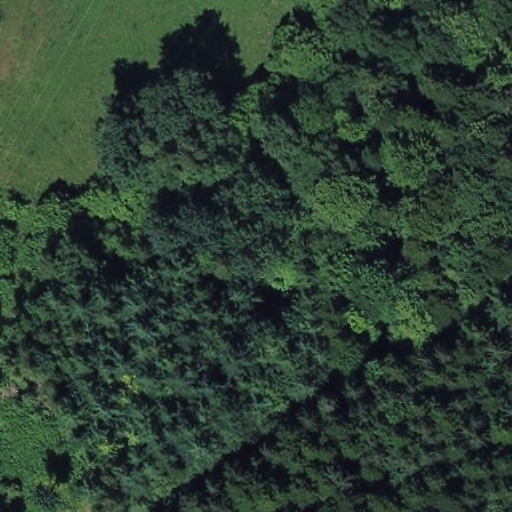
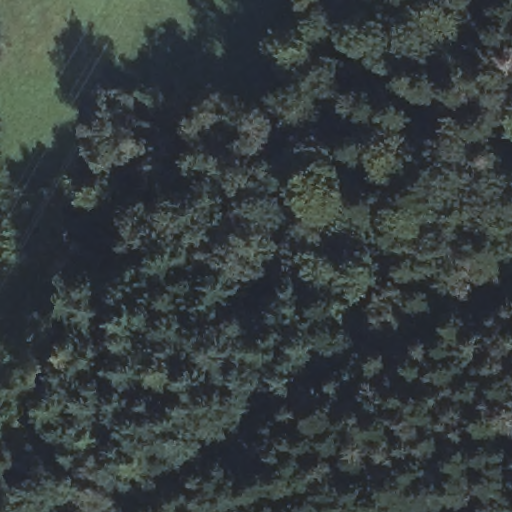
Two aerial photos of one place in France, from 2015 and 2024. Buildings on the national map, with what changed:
unchanged [(0,246),(0,237),(3,238),(0,246)]

